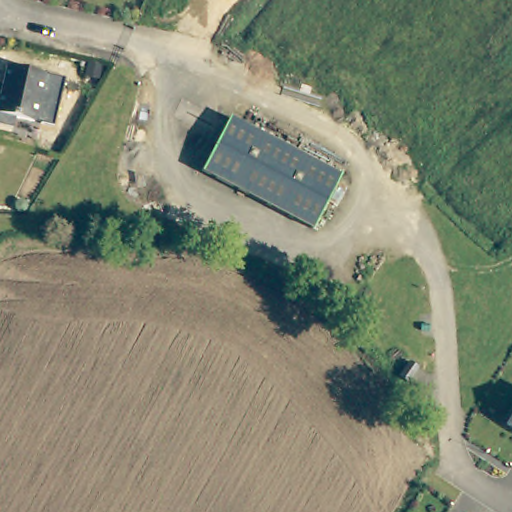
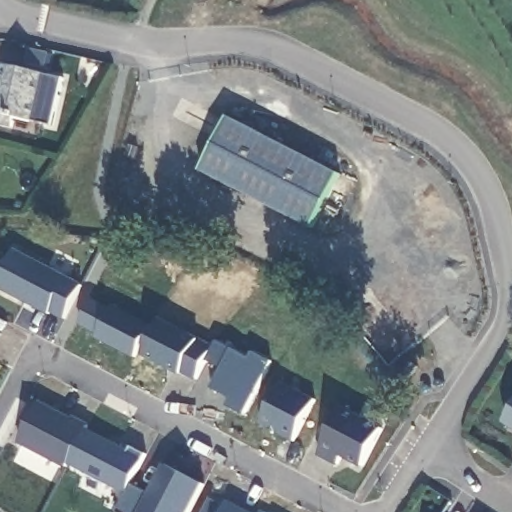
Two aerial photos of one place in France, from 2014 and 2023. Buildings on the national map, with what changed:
unchanged [(54,125),(34,121),(16,117),(14,127),(0,124),(0,95),(7,64),(52,75),(65,78),(54,125)]
unchanged [(342,174),(314,228),(202,169),(230,116),(342,174)]
new [(65,319),(51,312),(50,315),(0,289),(0,282),(15,252),(82,287),(65,319)]
new [(97,339),(99,334),(81,325),(95,298),(113,309),(116,305),(154,324),(136,359),(97,339)]
new [(0,339),(0,332),(3,334),(0,339)]
unchanged [(410,360),(418,367),(408,382),(399,375),(410,360)]
new [(316,399),(295,441),(262,424),(283,383),(316,399)]
new [(41,401),(73,417),(75,414),(91,423),(88,429),(131,450),(132,446),(147,454),(144,461),(126,493),(69,464),(67,468),(20,444),(41,401)]
new [(364,468),(343,457),(340,466),(320,456),(345,407),(385,428),(364,468)]
unchanged [(512,414),(512,426),(507,423),(512,414)]
new [(132,484),(152,494),(167,464),(205,484),(190,512),(117,512),(132,484)]
new [(228,502),(248,512),(223,512),(228,502)]

